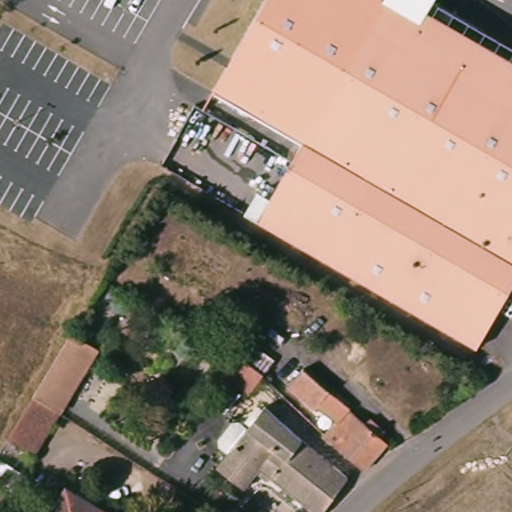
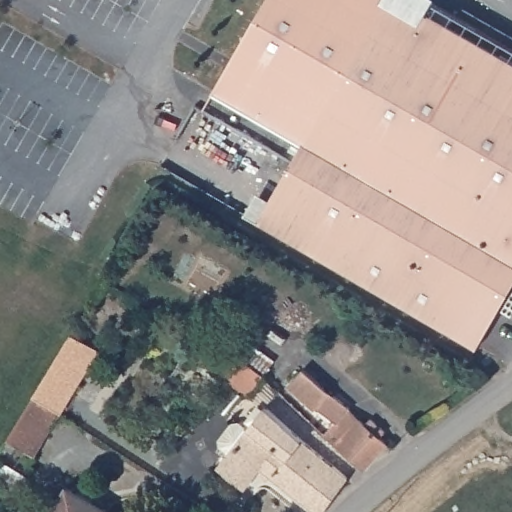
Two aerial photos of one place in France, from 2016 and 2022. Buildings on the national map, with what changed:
unchanged [(244,213),(257,191),(270,198),(303,141),(213,91),(264,0),(432,0),(425,12),(512,62),(512,284),(476,345),(244,213)]
unchanged [(243,339),(231,360),(214,348),(226,328),(243,339)]
unchanged [(81,372),(44,433),(18,418),(55,355),(81,372)]
unchanged [(241,356),(264,374),(258,380),(241,398),(226,384),(237,370),(232,367),(236,363),(241,356)]
unchanged [(296,369),(343,408),(342,410),(359,423),(363,418),(364,417),(379,430),(378,431),(374,436),(381,442),(361,468),(322,433),(331,422),(313,406),(310,410),(283,386),(296,369)]
unchanged [(227,424),(241,433),(258,407),(341,477),(317,512),(311,512),(254,473),(242,491),(215,475),(225,458),(211,450),(227,424)]
unchanged [(101,510),(100,512),(46,512),(60,486),(101,510)]

